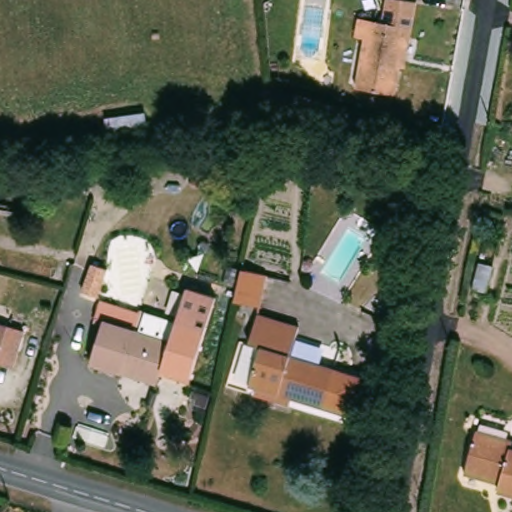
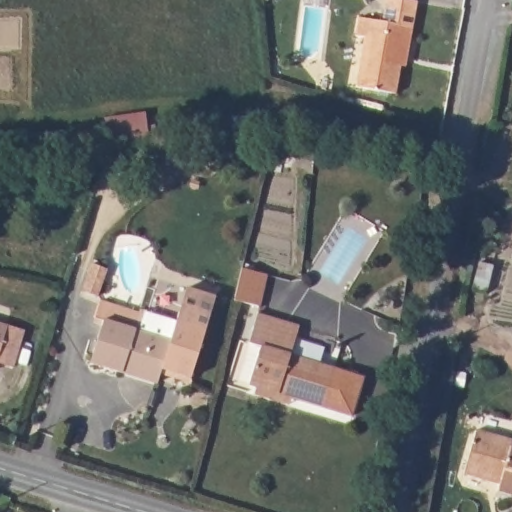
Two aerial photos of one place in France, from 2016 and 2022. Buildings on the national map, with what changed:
unchanged [(351,36),(355,16),(381,20),(385,0),(410,0),(415,1),(409,37),(403,36),(394,94),(355,86),(347,84),(356,37),(351,36)]
unchanged [(149,139),(108,145),(105,120),(146,114),(149,139)]
unchanged [(265,276),(257,308),(236,303),(244,271),(265,276)]
unchanged [(100,324),(92,321),(100,300),(137,313),(138,311),(175,323),(185,290),(214,299),(204,332),(190,379),(160,369),(156,379),(121,367),(119,374),(87,362),(100,324)]
unchanged [(302,328),(294,357),(366,379),(355,418),(250,388),(261,349),(250,346),(258,316),(302,328)]
unchanged [(24,329),(12,366),(0,362),(0,323),(6,324),(24,329)]
unchanged [(512,440),(512,445),(511,447),(512,448),(512,497),(497,493),(500,482),(469,473),(480,432),(512,440)]

